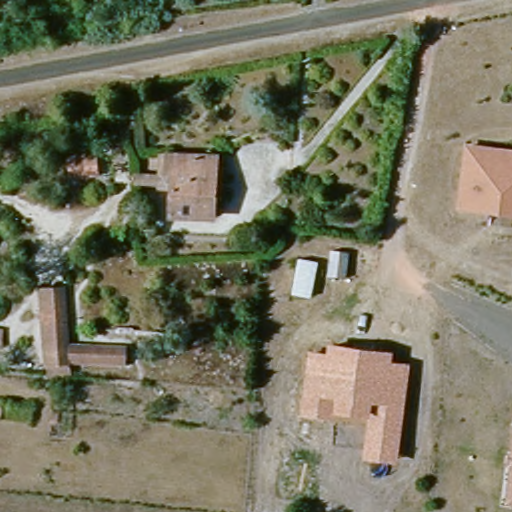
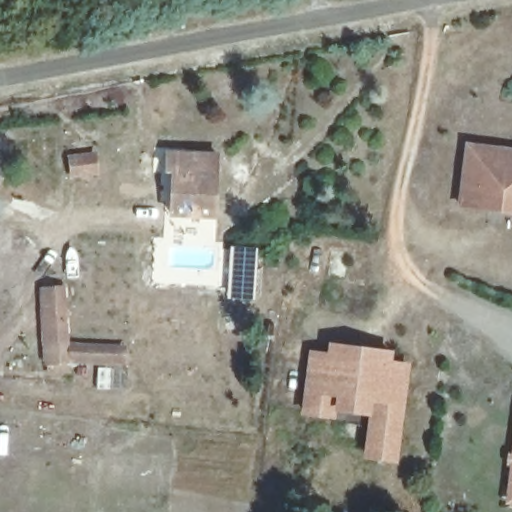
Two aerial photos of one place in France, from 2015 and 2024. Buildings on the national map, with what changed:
unchanged [(223,211),(180,219),(172,179),(162,181),(157,156),(198,148),(212,147),(216,165),(216,178),(223,211)]
unchanged [(492,195),(487,200),(485,211),(462,208),(468,148),(512,153),(512,198),(492,195)]
new [(230,249),(257,250),(254,299),(227,298),(230,249)]
unchanged [(43,286),(66,283),(76,342),(129,342),(130,364),(73,361),(75,371),(47,374),(43,286)]
unchanged [(327,351),(327,343),(393,351),(392,360),(412,363),(397,464),(363,459),(369,416),(333,412),(332,419),(300,416),(308,349),(327,351)]
unchanged [(508,504),(512,442),(512,505),(508,504)]

